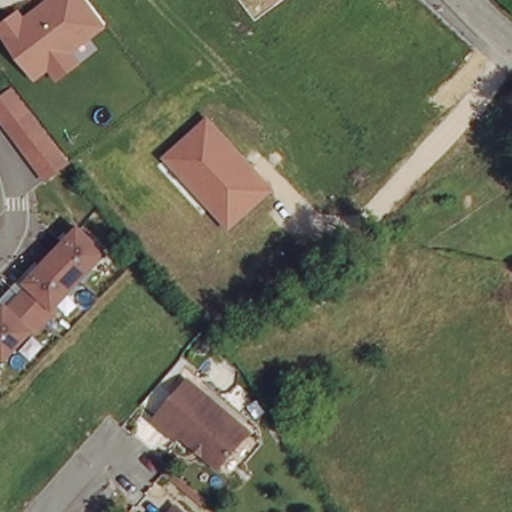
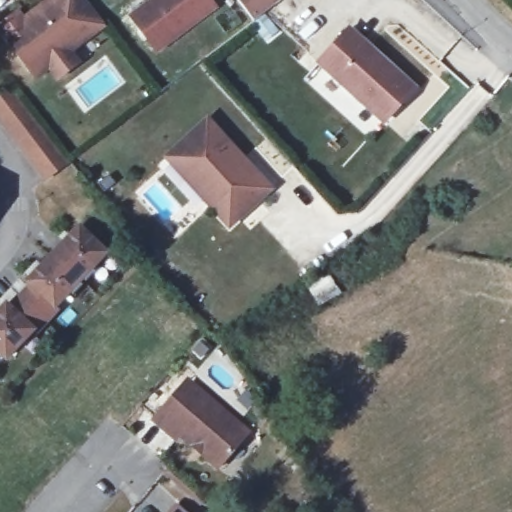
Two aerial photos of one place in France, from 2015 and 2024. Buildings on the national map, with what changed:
unchanged [(23,14),(43,0),(85,0),(107,26),(73,52),(82,61),(58,80),(49,70),(35,80),(0,35),(0,23),(19,9),(23,14)]
new [(147,0),(213,0),(219,7),(157,54),(127,15),(147,0)]
unchanged [(274,3),(271,0),(278,0),(274,3)]
new [(350,24),(418,87),(384,124),(315,63),(350,24)]
unchanged [(12,88),(70,161),(44,180),(0,124),(0,97),(12,88)]
unchanged [(274,189),(230,229),(162,156),(208,116),(274,189)]
unchanged [(5,300),(13,308),(30,289),(22,280),(78,223),(109,251),(57,305),(63,310),(37,336),(33,334),(3,362),(0,359),(0,305),(5,300)]
unchanged [(181,430),(175,436),(153,416),(176,388),(186,377),(198,386),(250,429),(219,463),(205,451),(194,441),(181,430)]
unchanged [(187,512),(175,512),(180,506),(187,512)]

